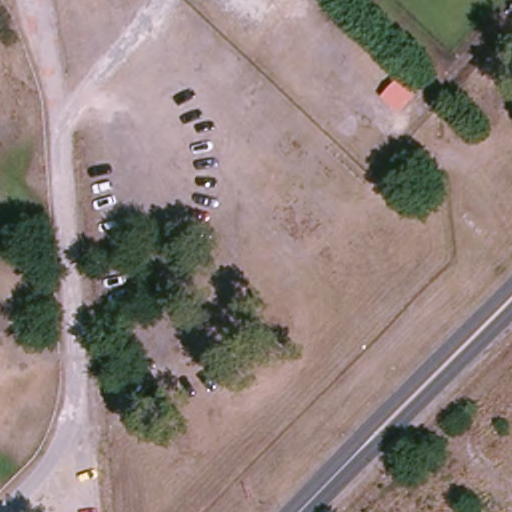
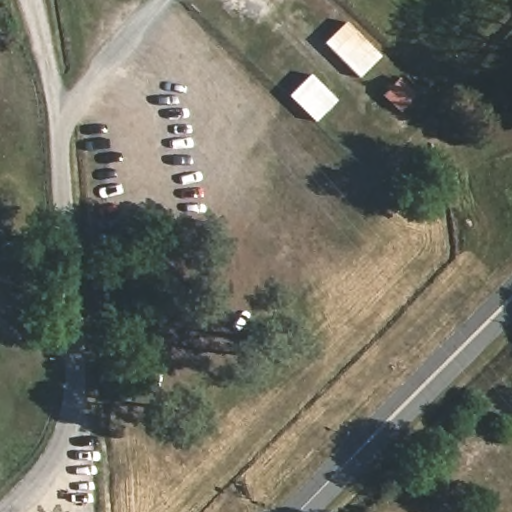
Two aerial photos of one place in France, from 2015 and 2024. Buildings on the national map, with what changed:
new [(345,22),(380,56),(359,78),(324,44),(345,22)]

